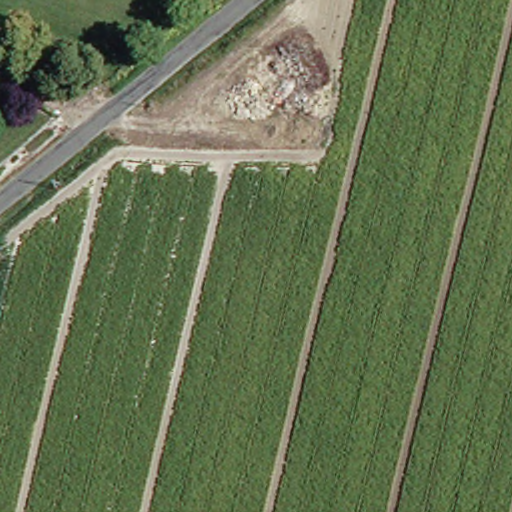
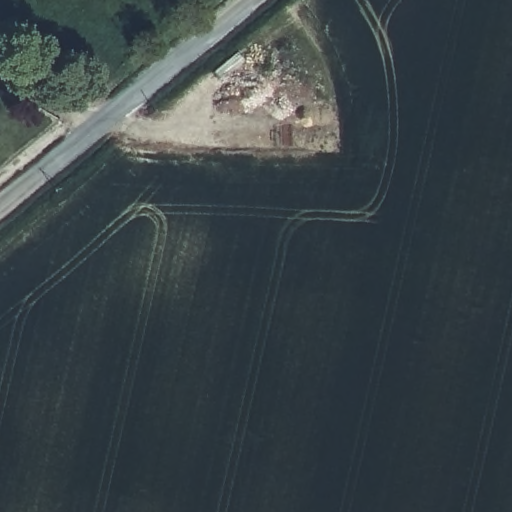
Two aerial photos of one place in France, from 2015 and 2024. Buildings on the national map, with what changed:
[]

